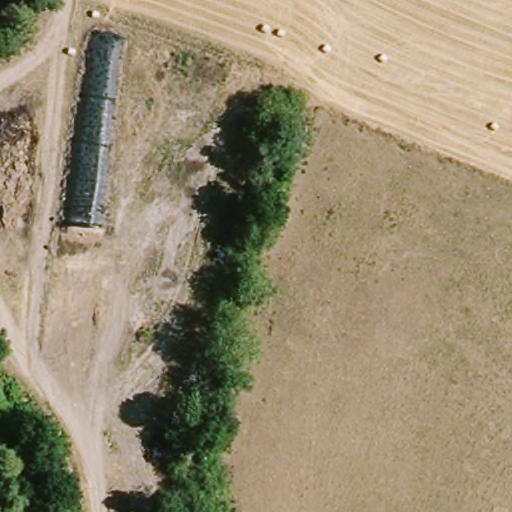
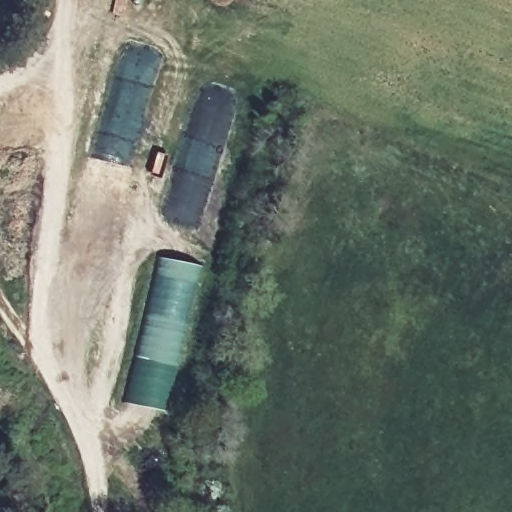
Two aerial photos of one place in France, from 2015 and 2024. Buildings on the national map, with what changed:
new [(204,267),(169,414),(117,405),(150,257),(204,267)]
unchanged [(258,322),(255,333),(243,330),(247,318),(258,322)]

